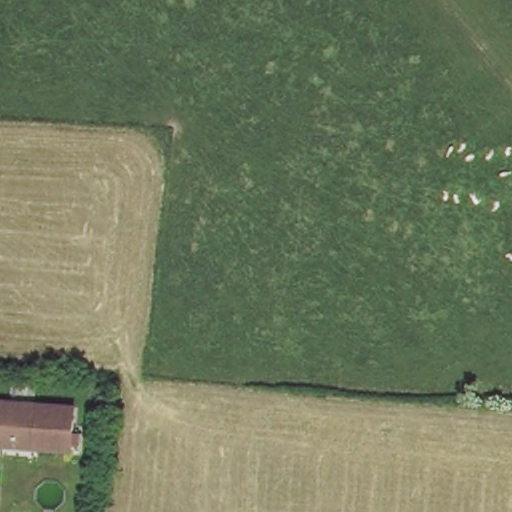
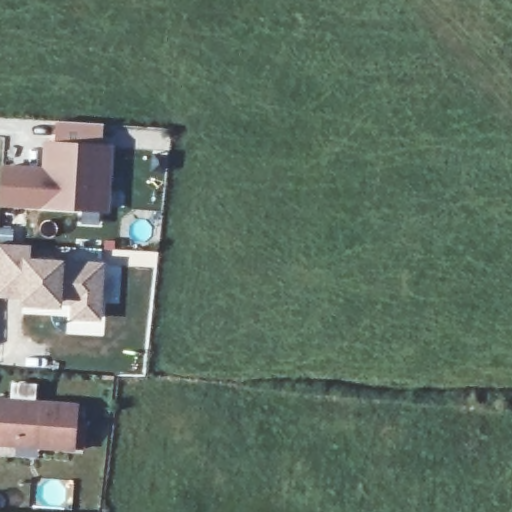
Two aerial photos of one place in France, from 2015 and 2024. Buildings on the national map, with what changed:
new [(3,165),(43,167),(44,142),(115,146),(110,213),(0,209),(3,165)]
new [(28,246),(28,262),(102,266),(100,320),(74,317),(75,300),(72,297),(60,296),(60,306),(24,305),(25,297),(0,296),(0,245),(28,246)]
unchanged [(79,405),(76,447),(41,445),(42,437),(6,436),(6,441),(0,441),(0,398),(79,405)]

